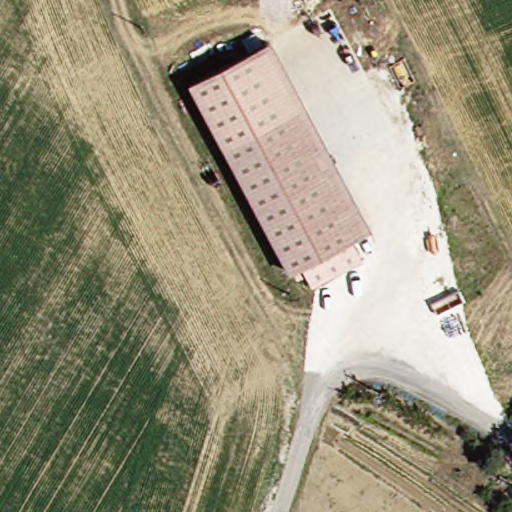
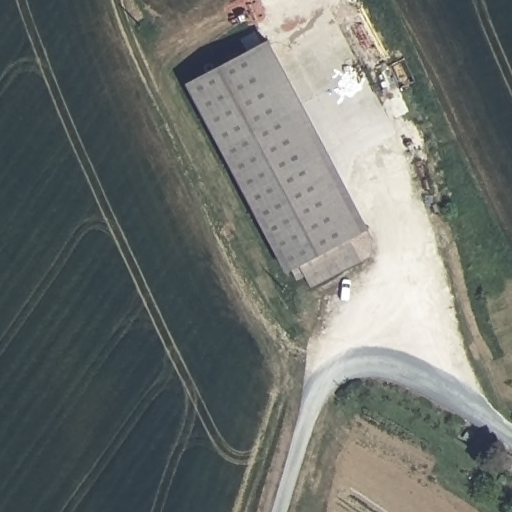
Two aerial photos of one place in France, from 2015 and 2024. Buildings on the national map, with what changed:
unchanged [(187,85),(267,40),(297,97),(212,140),(187,85)]
unchanged [(212,140),(297,97),(365,227),(282,267),(212,140)]

